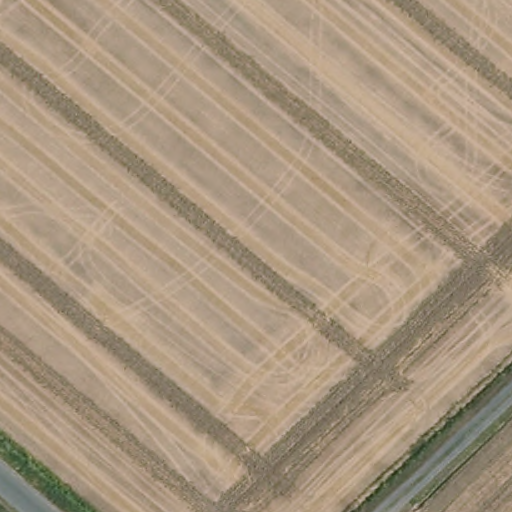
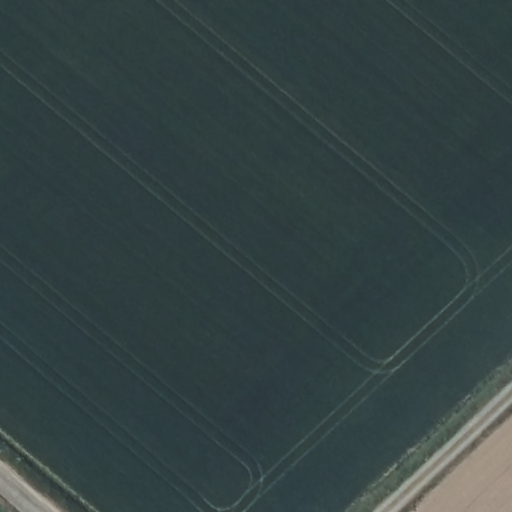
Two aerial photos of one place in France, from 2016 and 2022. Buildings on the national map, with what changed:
[]

